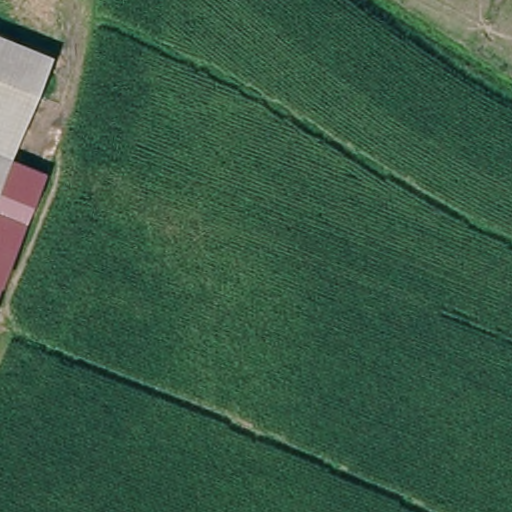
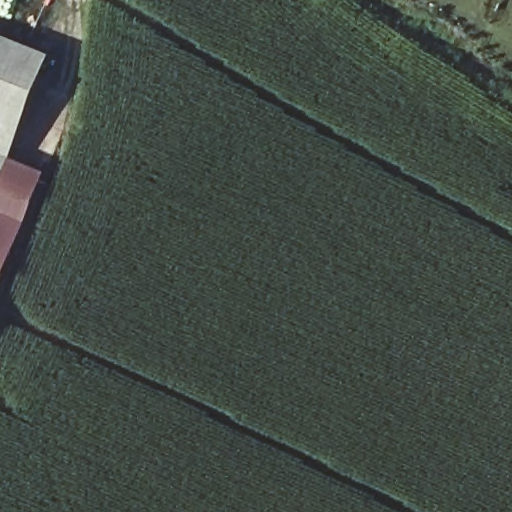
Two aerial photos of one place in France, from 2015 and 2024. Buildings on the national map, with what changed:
unchanged [(0,30),(55,53),(26,122),(0,111),(0,30)]
unchanged [(20,134),(0,182),(0,111),(26,122),(20,134)]
unchanged [(0,291),(0,181),(9,160),(46,174),(0,291)]

